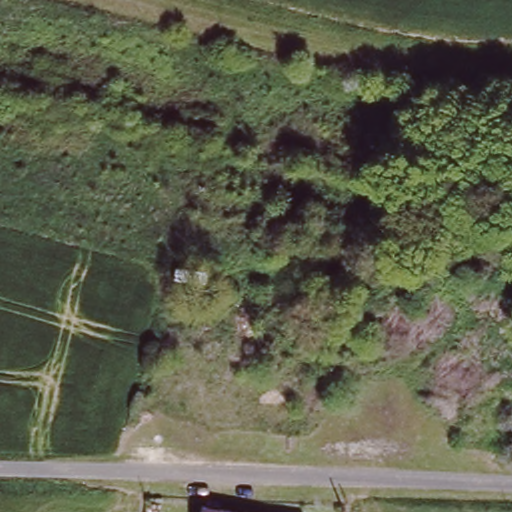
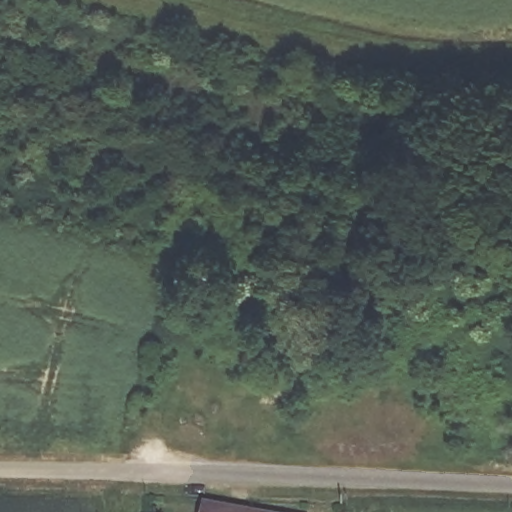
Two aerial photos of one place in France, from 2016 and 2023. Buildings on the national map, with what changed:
unchanged [(245,512),(211,512),(212,506),(245,512)]

